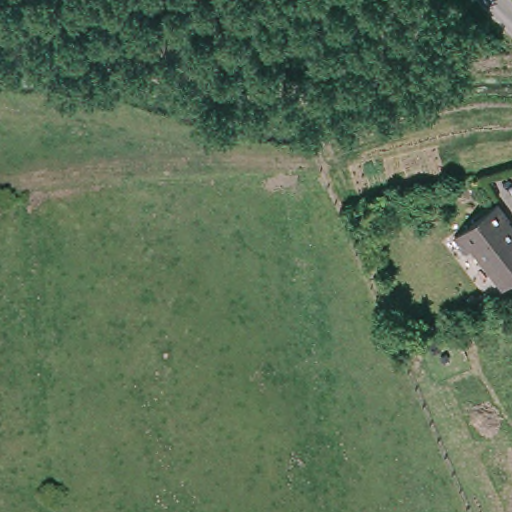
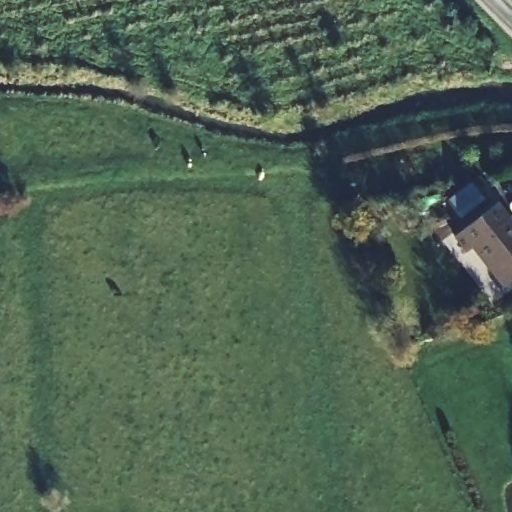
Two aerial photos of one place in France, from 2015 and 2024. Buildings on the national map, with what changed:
unchanged [(494,201),(509,221),(507,223),(512,230),(512,281),(503,288),(471,250),(466,253),(450,235),(494,201)]

